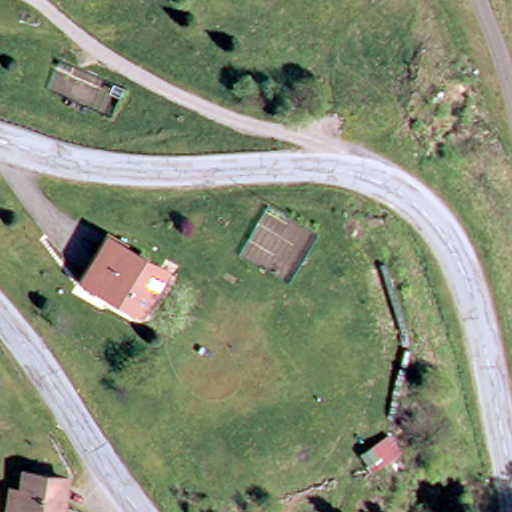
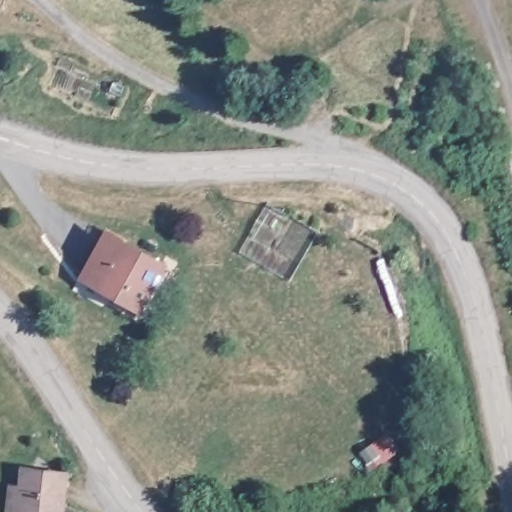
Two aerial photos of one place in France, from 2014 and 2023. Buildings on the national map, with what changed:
unchanged [(108,235),(172,275),(148,316),(85,276),(108,235)]
unchanged [(14,494),(25,495),(25,493),(27,478),(65,483),(64,494),(61,512),(12,512),(14,494)]

